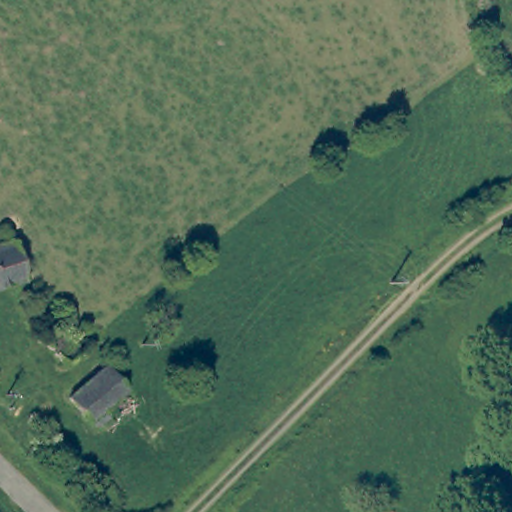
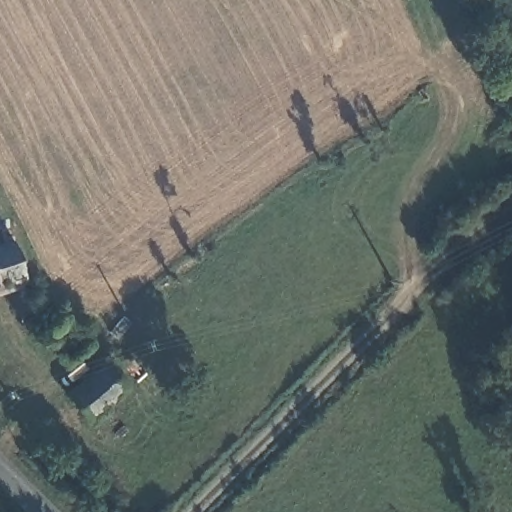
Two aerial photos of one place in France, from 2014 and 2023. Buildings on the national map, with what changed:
unchanged [(4,221),(6,231),(14,230),(24,275),(15,278),(0,283),(0,222),(4,221)]
unchanged [(91,338),(66,360),(41,331),(65,310),(91,338)]
unchanged [(97,432),(87,421),(68,397),(103,366),(123,390),(101,408),(110,421),(97,432)]
unchanged [(126,487),(104,507),(86,483),(108,467),(126,487)]

